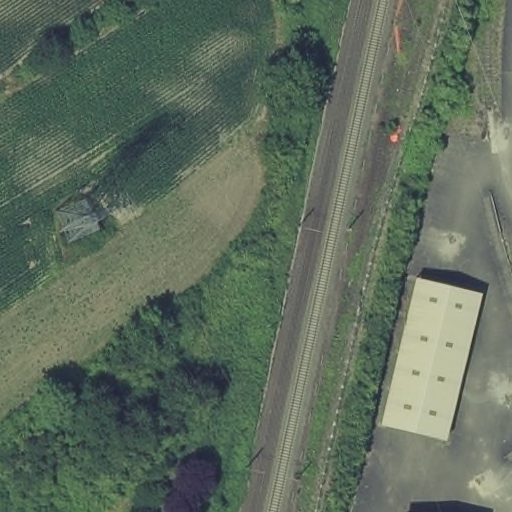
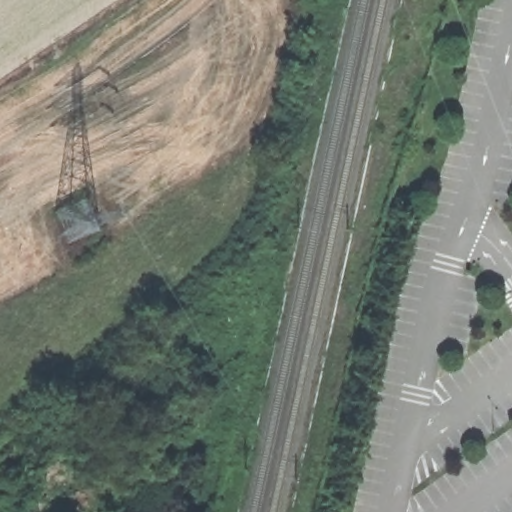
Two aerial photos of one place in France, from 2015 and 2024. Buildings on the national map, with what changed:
demolished [(449,437),(381,421),(417,278),(485,293),(449,437)]

